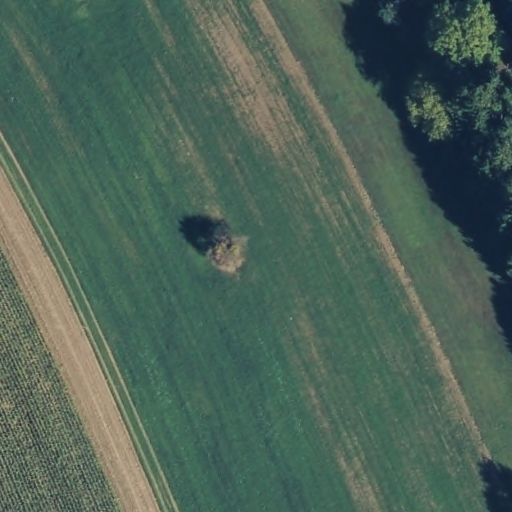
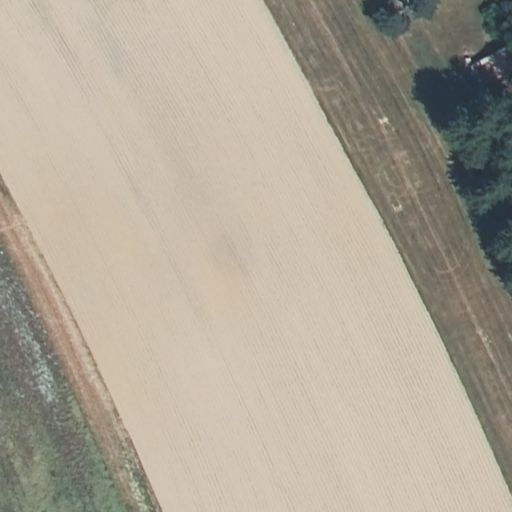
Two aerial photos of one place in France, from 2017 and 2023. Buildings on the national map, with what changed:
unchanged [(499,76),(489,57),(512,44),(512,69),(499,76)]

